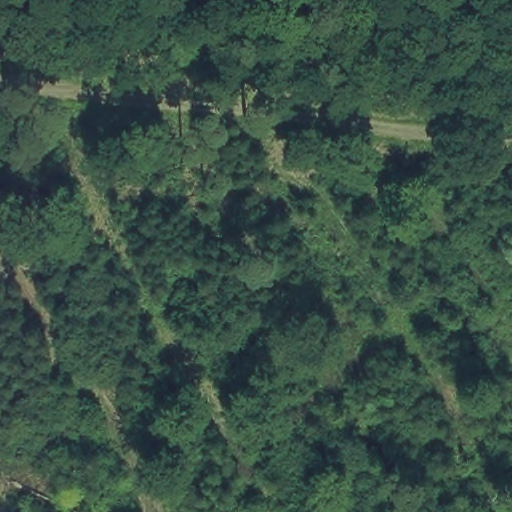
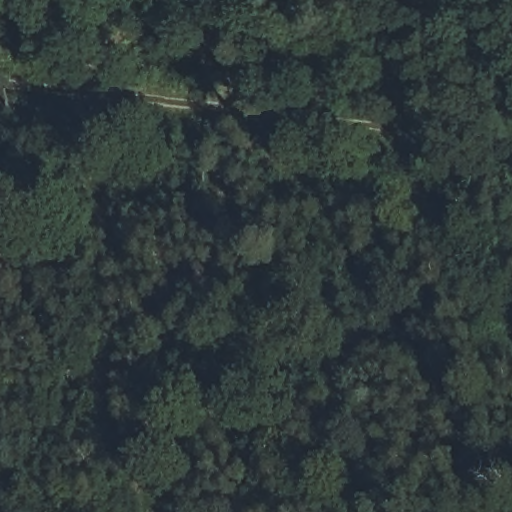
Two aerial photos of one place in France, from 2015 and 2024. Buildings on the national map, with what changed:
unchanged [(488,174),(492,156),(512,159),(512,178),(488,174)]

